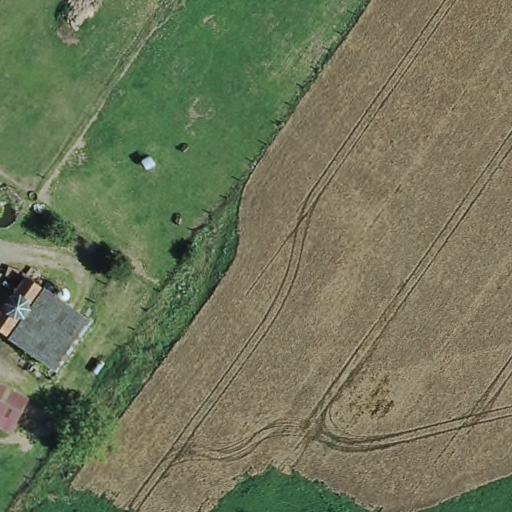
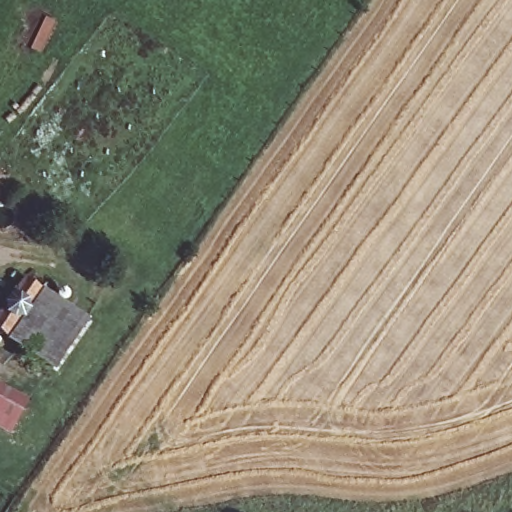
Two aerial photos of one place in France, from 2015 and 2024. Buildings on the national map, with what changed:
unchanged [(0,330),(0,321),(30,282),(47,294),(12,339),(0,330)]
unchanged [(87,323),(55,369),(12,339),(47,294),(87,323)]
unchanged [(22,411),(9,435),(0,430),(0,390),(26,404),(22,411)]

